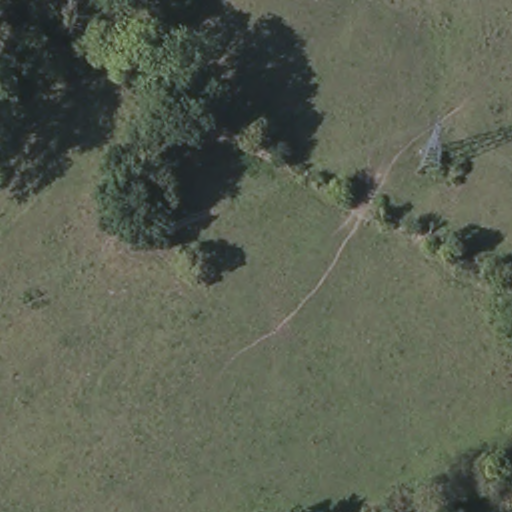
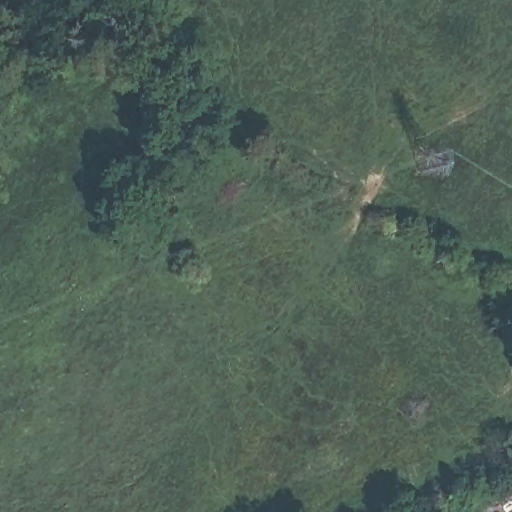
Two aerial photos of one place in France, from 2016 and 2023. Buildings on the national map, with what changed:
[]

